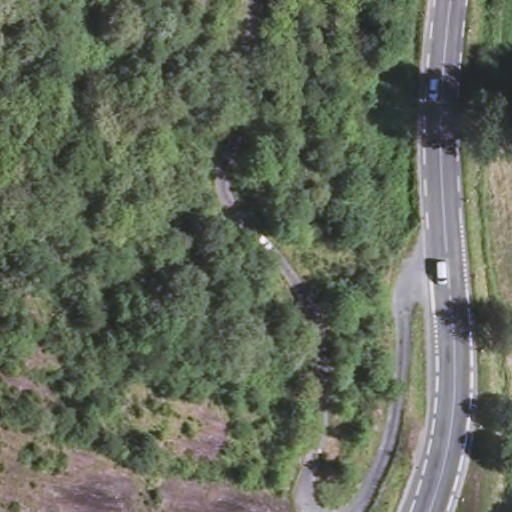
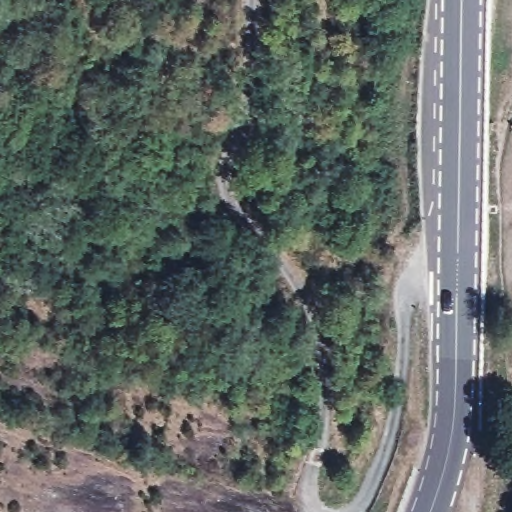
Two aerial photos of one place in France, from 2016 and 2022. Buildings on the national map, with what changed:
[]

